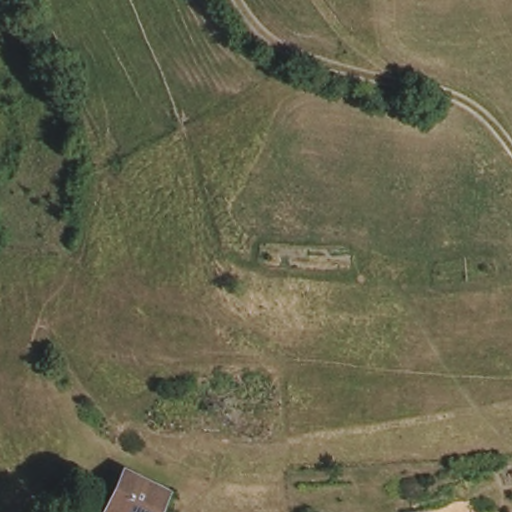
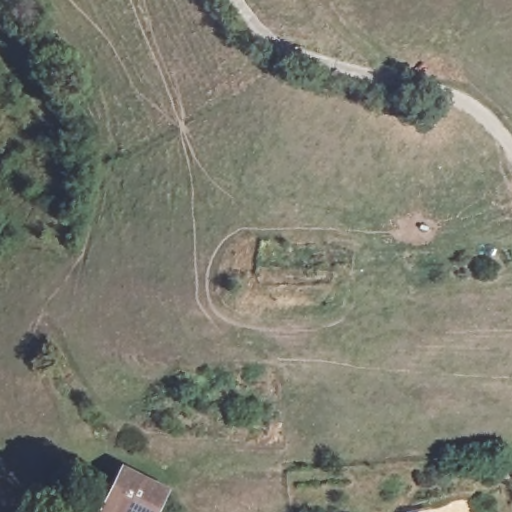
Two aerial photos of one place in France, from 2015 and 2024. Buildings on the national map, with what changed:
unchanged [(128,464),(169,491),(155,512),(96,512),(98,509),(128,464)]

